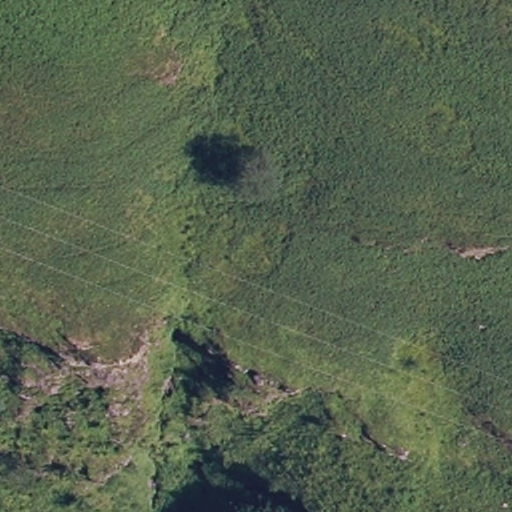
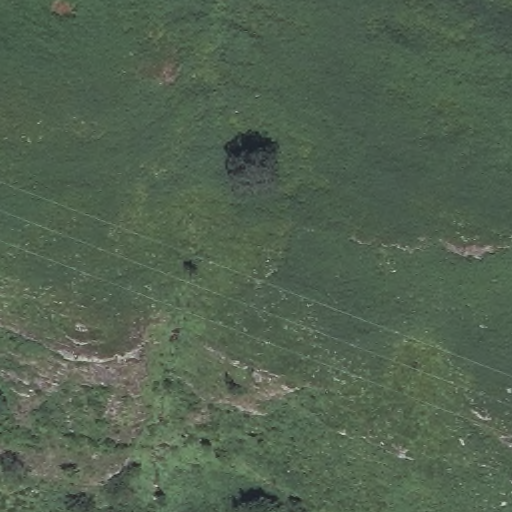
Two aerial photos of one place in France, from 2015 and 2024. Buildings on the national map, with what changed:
[]

